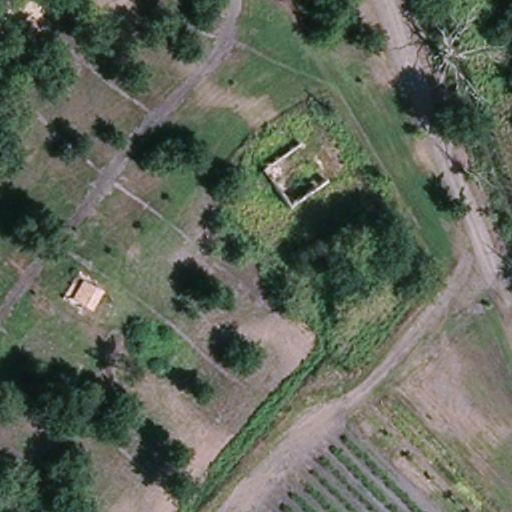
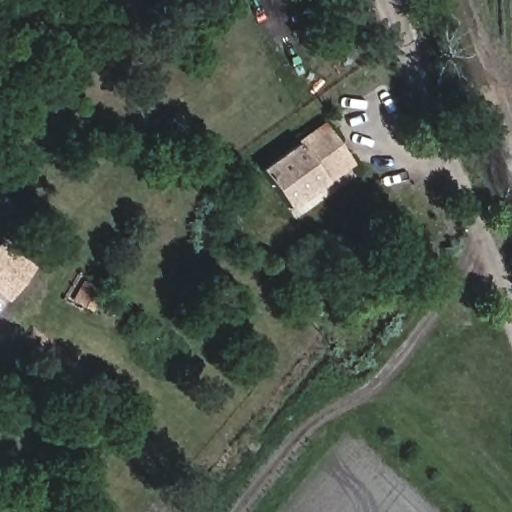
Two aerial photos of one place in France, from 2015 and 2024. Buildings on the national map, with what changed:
new [(288,207),(260,169),(298,142),(325,122),(355,162),(326,182),(288,207)]
new [(0,295),(0,242),(0,241),(35,267),(8,301),(0,295)]

